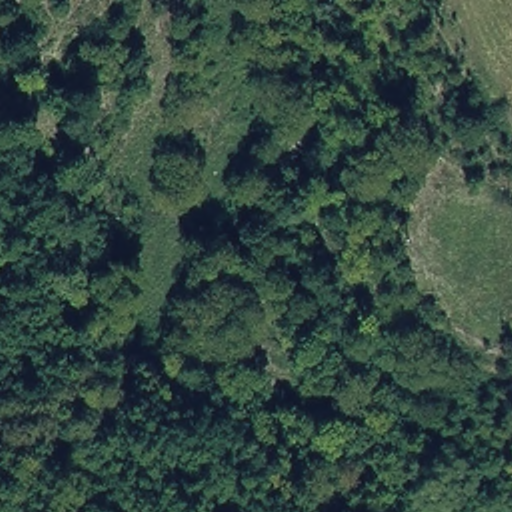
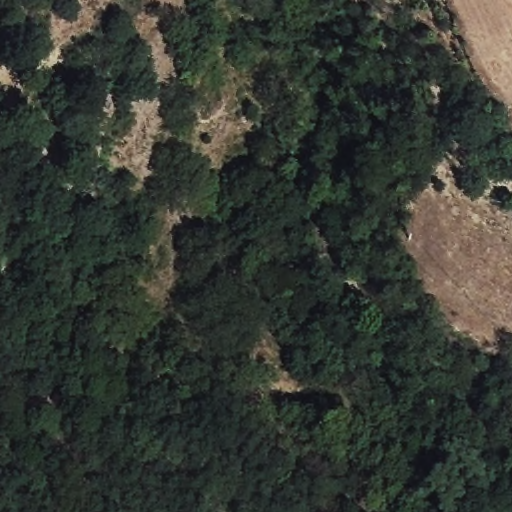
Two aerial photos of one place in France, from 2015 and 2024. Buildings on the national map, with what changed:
[]

